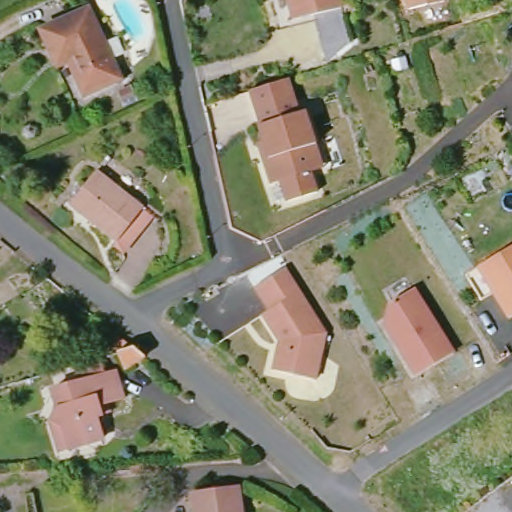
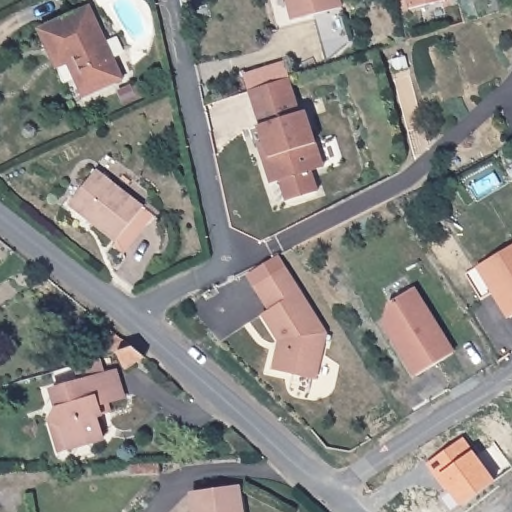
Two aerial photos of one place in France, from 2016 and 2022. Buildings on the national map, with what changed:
unchanged [(271,0),(343,0),(344,6),(297,17),(277,22),(271,0)]
unchanged [(444,12),(410,20),(404,0),(441,0),(444,12)]
unchanged [(85,6),(119,74),(79,92),(59,56),(52,61),(38,31),(85,6)]
unchanged [(274,181),(265,184),(258,161),(251,137),(258,136),(254,122),(257,121),(246,87),(285,75),(295,110),(302,108),(312,139),(321,166),(305,171),(311,192),(280,202),(274,181)]
unchanged [(125,252),(118,238),(69,205),(93,171),(143,205),(154,212),(125,252)]
unchanged [(512,303),(505,292),(492,300),(477,273),(512,252),(512,303)]
unchanged [(279,264),(324,332),(316,378),(270,368),(273,351),(280,346),(257,313),(265,308),(249,282),(279,264)]
unchanged [(444,331),(458,322),(467,336),(435,357),(427,342),(398,361),(371,319),(418,290),(444,331)]
unchanged [(133,345),(147,357),(127,367),(117,351),(133,345)]
unchanged [(45,422),(53,411),(47,392),(113,370),(122,397),(105,402),(109,412),(98,416),(93,417),(100,439),(67,451),(55,455),(45,422)]
new [(439,477),(437,479),(427,466),(460,441),(493,484),(461,507),(439,477)]
unchanged [(240,484),(243,512),(189,512),(187,493),(240,484)]

